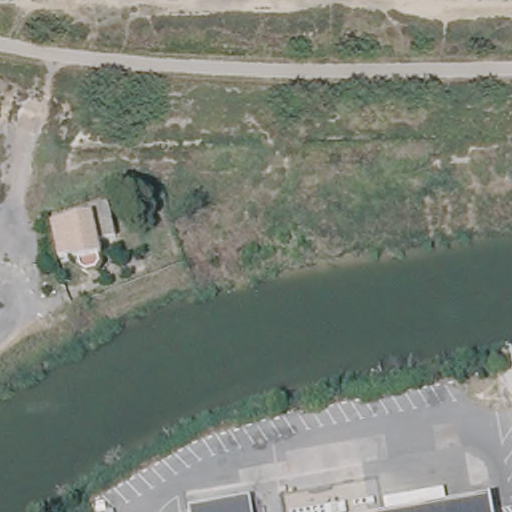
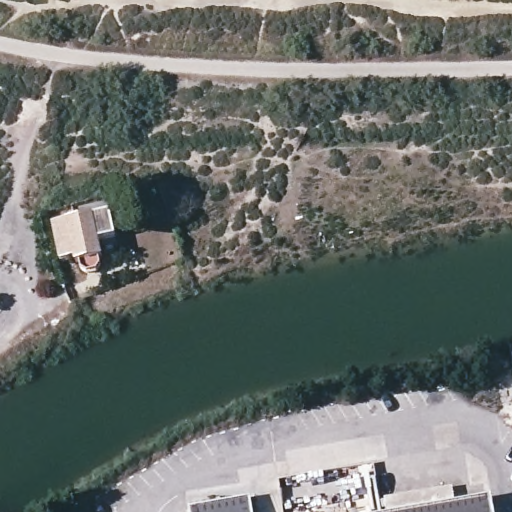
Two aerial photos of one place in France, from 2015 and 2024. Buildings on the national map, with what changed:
unchanged [(101,255),(102,261),(101,264),(100,268),(89,271),(82,267),(81,260),(76,261),(74,256),(61,259),(54,222),(94,213),(92,205),(110,201),(117,234),(100,238),(104,254),(101,255)]
unchanged [(491,512),(419,512),(489,499),(491,512)]
unchanged [(248,512),(196,512),(247,502),(248,512)]

